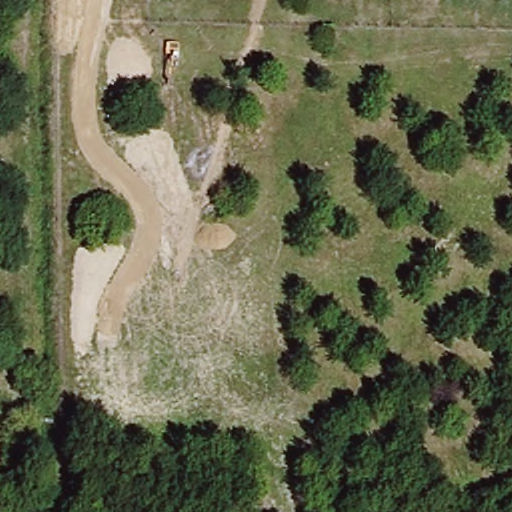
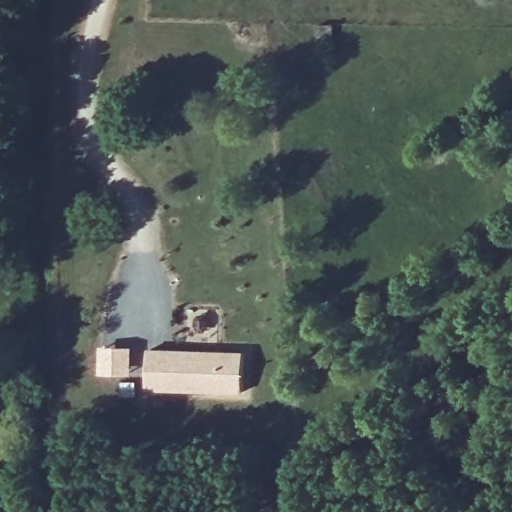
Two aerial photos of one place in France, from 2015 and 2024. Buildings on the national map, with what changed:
new [(245,352),(245,392),(148,390),(150,349),(245,352)]

